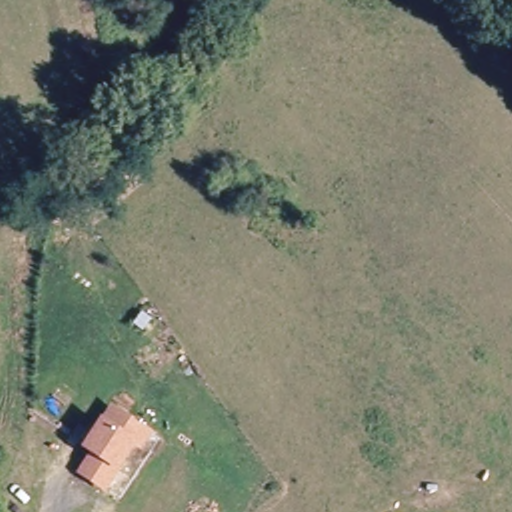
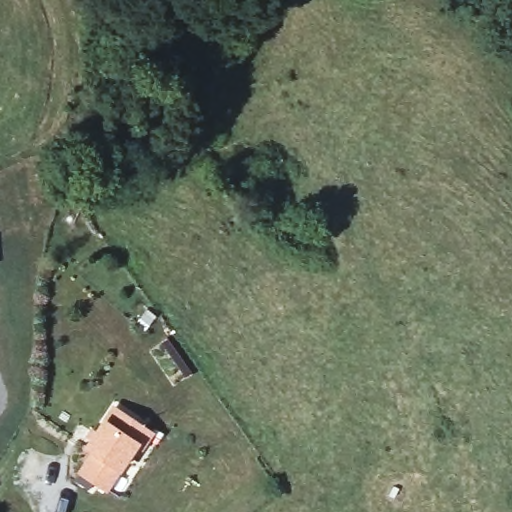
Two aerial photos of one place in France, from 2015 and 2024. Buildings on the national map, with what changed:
unchanged [(84,477),(97,456),(90,451),(115,411),(137,425),(152,435),(144,448),(138,445),(109,492),(84,477)]

